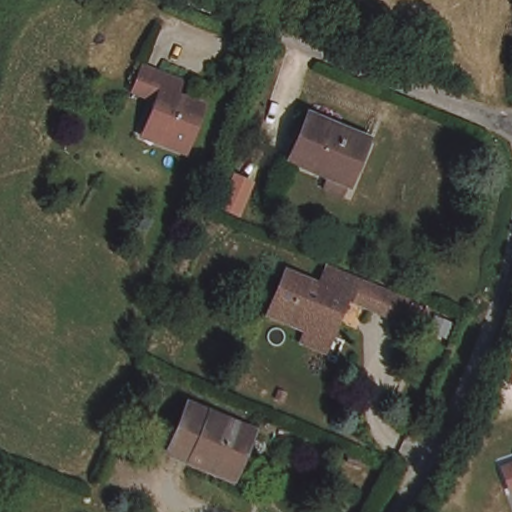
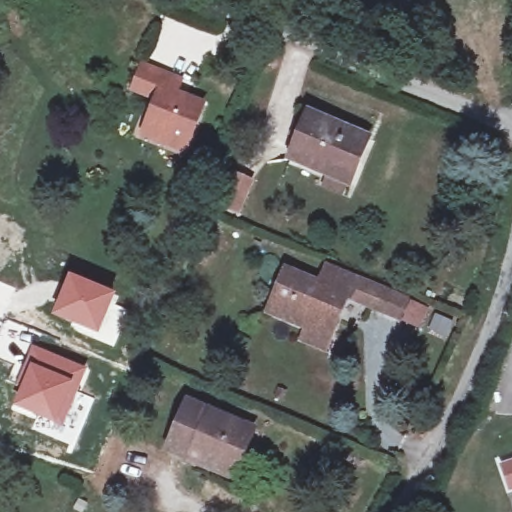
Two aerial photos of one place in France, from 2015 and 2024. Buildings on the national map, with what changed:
unchanged [(146,122),(157,95),(147,92),(133,86),(141,66),(155,72),(180,81),(177,91),(203,101),(186,146),(165,137),(144,129),(146,122)]
unchanged [(295,159),(304,137),(296,133),(302,117),(311,120),(312,119),(314,114),(372,139),(354,184),(352,183),(347,196),(329,187),(334,176),(295,159)]
unchanged [(241,217),(220,207),(234,171),(255,182),(241,217)]
unchanged [(329,350),(310,342),(315,328),(275,312),(292,272),(324,285),(331,268),(362,281),(362,277),(389,288),(381,310),(350,297),(334,337),(332,341),(329,350)]
new [(70,275),(116,295),(99,337),(52,317),(70,275)]
new [(31,346),(86,369),(61,428),(9,407),(31,346)]
unchanged [(230,472),(179,451),(199,403),(210,408),(262,430),(249,461),(242,477),(230,472)]
demolished [(512,449),(512,481),(507,483),(505,478),(504,473),(497,456),(497,455),(512,449)]
unchanged [(350,455),(363,460),(361,466),(347,461),(350,455)]
new [(510,493),(500,467),(512,462),(512,493),(510,493)]

